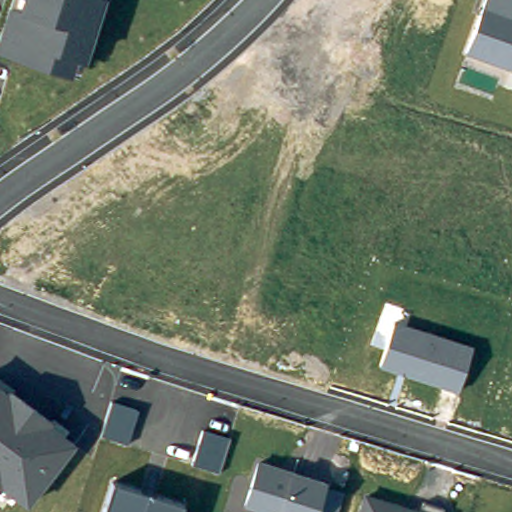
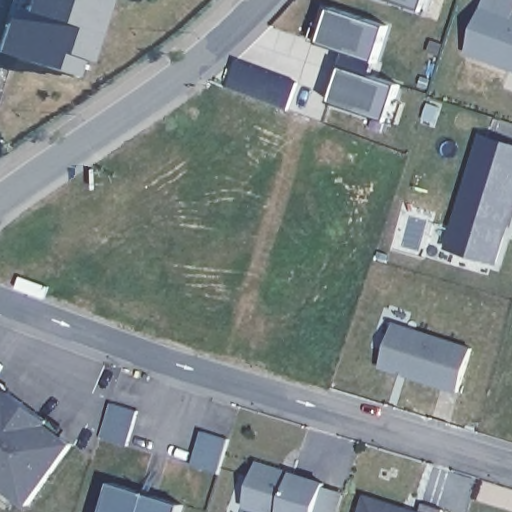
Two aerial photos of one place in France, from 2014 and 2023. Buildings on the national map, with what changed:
unchanged [(82,77),(0,52),(0,36),(10,0),(106,0),(82,77)]
new [(424,10),(398,0),(427,0),(424,10)]
unchanged [(466,54),(485,0),(512,0),(512,70),(466,54)]
new [(332,9),(387,27),(377,60),(372,77),(400,85),(389,121),(331,102),(343,68),(348,52),(321,42),(332,9)]
new [(237,61),(300,84),(289,111),(227,88),(237,61)]
new [(512,143),(512,216),(497,266),(446,249),(480,133),(512,143)]
unchanged [(460,394),(381,369),(395,322),(475,347),(460,394)]
unchanged [(27,507),(0,487),(0,387),(77,444),(27,507)]
new [(113,403),(140,412),(129,447),(102,437),(113,403)]
new [(205,432),(232,441),(221,475),(194,466),(205,432)]
unchanged [(340,512),(262,512),(244,507),(258,460),(347,488),(340,512)]
unchanged [(184,512),(105,512),(115,482),(186,507),(184,512)]
unchanged [(360,512),(365,495),(420,512),(360,512)]

